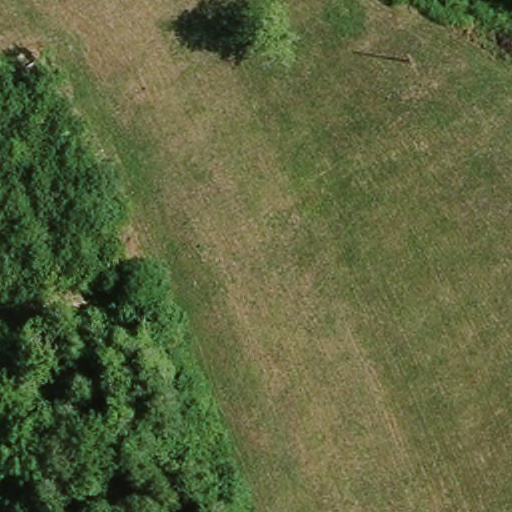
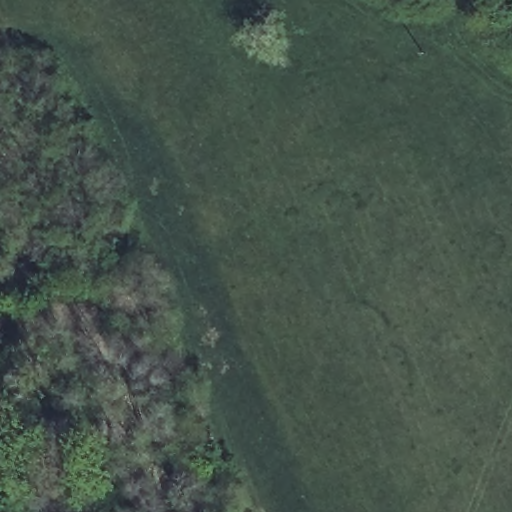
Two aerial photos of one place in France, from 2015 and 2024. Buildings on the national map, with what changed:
[]

